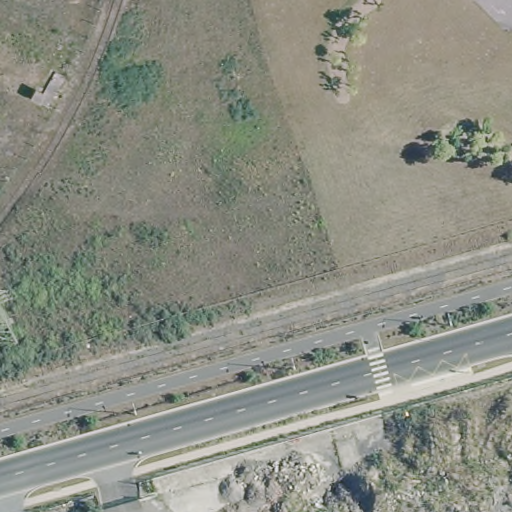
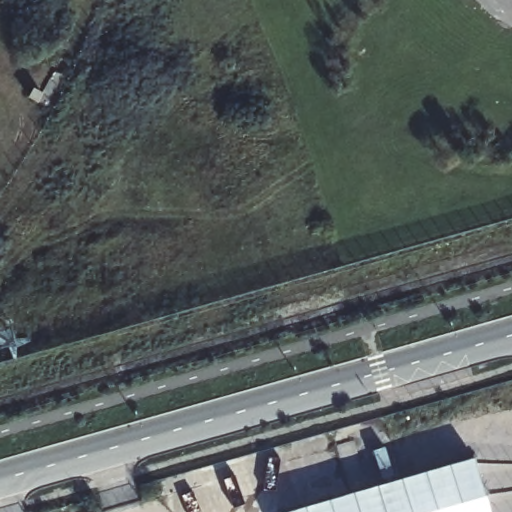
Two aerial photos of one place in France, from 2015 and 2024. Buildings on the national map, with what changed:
new [(490,512),(287,512),(474,457),(490,512)]

